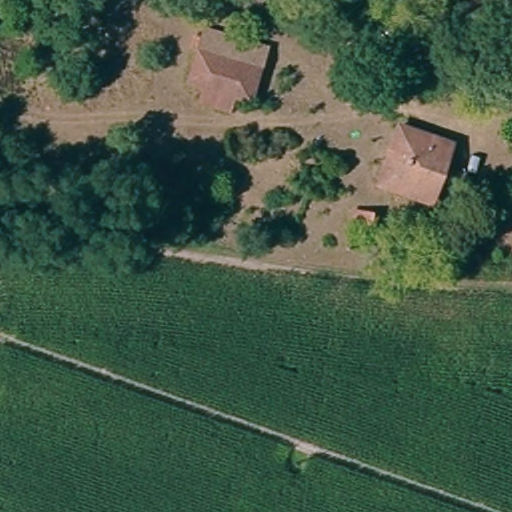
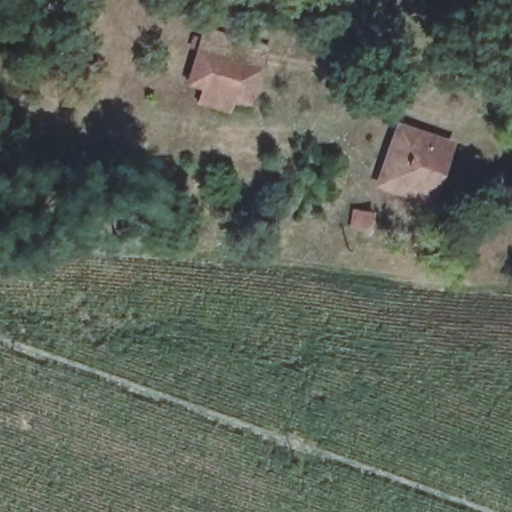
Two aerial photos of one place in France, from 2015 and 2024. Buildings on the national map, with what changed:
unchanged [(86,45),(97,1),(137,9),(128,57),(86,45)]
unchanged [(241,96),(227,92),(224,103),(198,96),(202,85),(184,80),(190,56),(248,73),(241,96)]
unchanged [(447,148),(430,200),(380,183),(396,134),(447,148)]
unchanged [(394,217),(388,243),(346,234),(348,207),(394,217)]

